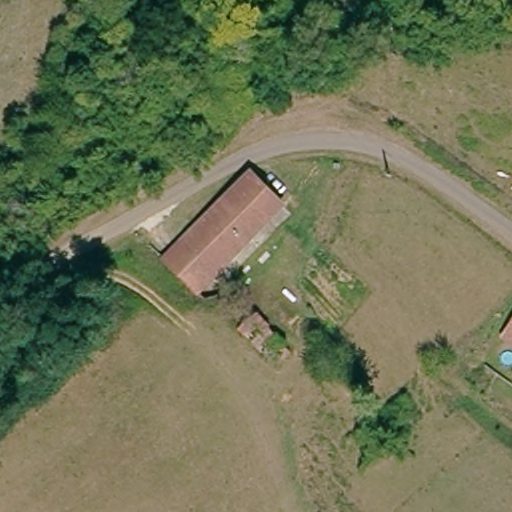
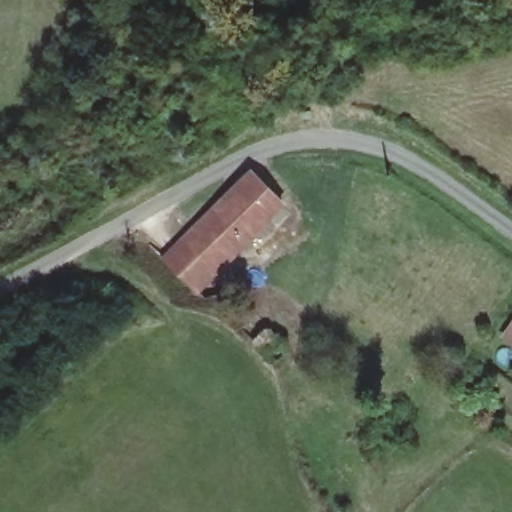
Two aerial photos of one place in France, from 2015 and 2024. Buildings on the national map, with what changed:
unchanged [(201,285),(170,253),(241,183),(273,215),(201,285)]
unchanged [(288,351),(272,365),(242,330),(258,315),(288,351)]
unchanged [(512,328),(512,343),(505,338),(512,328)]

